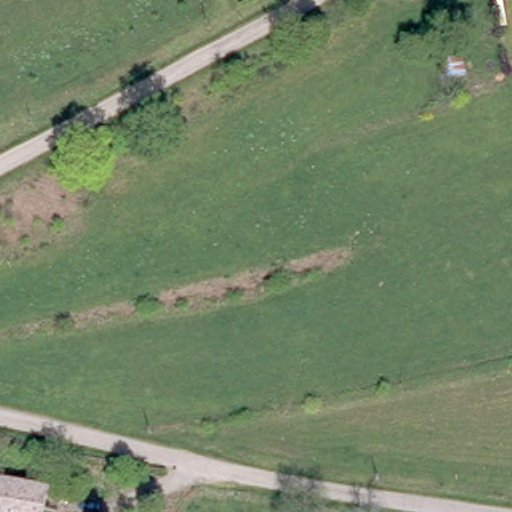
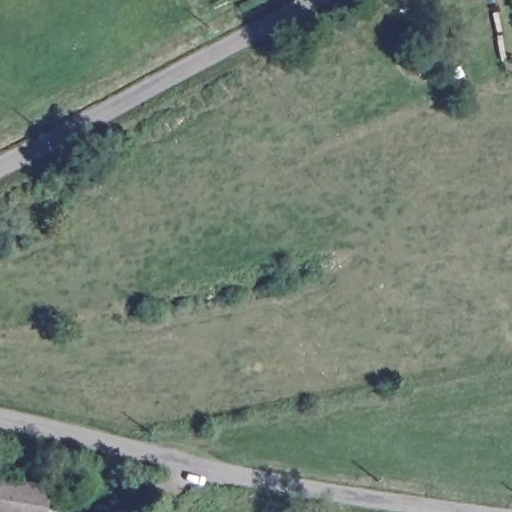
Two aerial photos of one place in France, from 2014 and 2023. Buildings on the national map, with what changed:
unchanged [(3,481),(39,489),(34,512),(0,512),(0,494),(3,481)]

